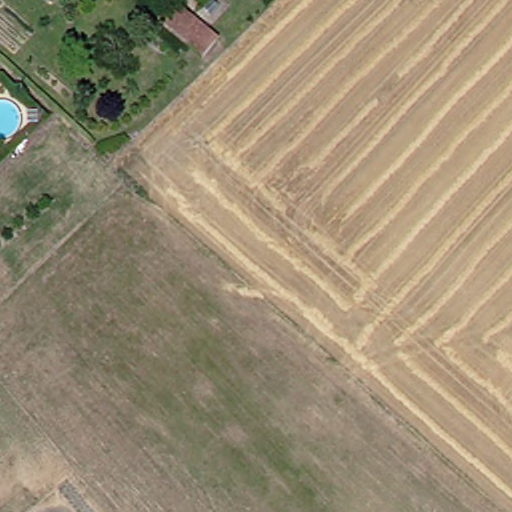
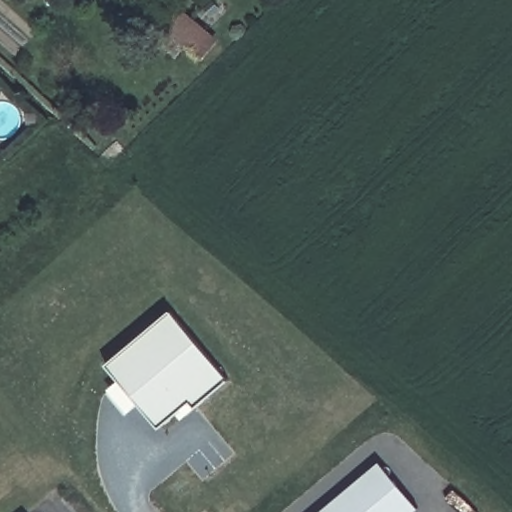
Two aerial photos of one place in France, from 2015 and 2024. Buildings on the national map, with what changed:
unchanged [(193,55),(148,19),(156,6),(161,0),(183,18),(207,37),(193,55)]
new [(220,380),(224,384),(195,408),(189,400),(158,426),(136,398),(123,408),(109,390),(120,379),(109,366),(172,312),(226,375),(220,380)]
new [(419,508),(414,512),(384,512),(358,482),(381,463),(419,508)]
new [(384,512),(322,512),(358,482),(384,512)]

